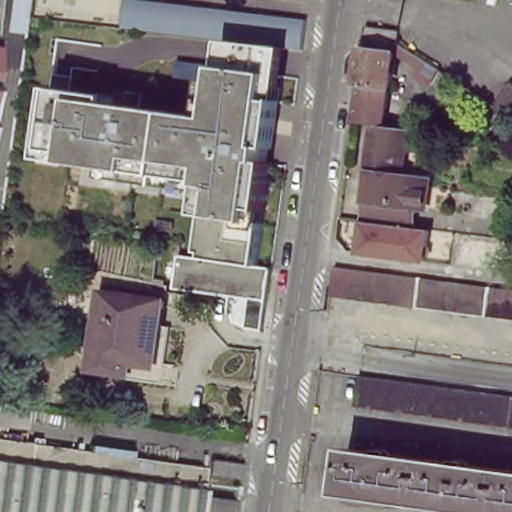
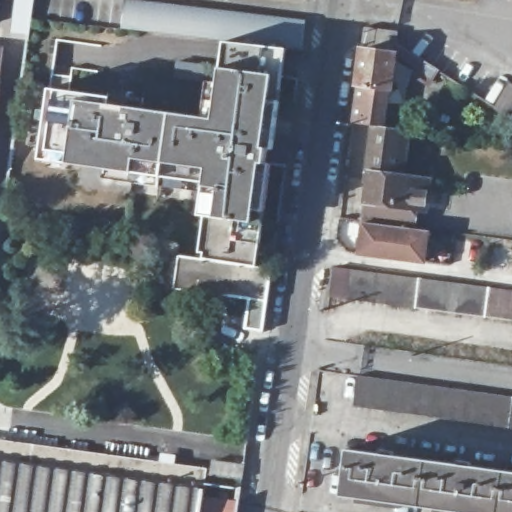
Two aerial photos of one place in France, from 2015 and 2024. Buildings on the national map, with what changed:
unchanged [(30,12),(15,9),(16,0),(32,0),(30,12)]
unchanged [(138,99),(136,108),(215,118),(223,69),(227,43),(123,30),(129,0),(133,0),(309,23),(306,53),(284,50),(280,75),(261,219),(259,263),(200,255),(203,213),(207,186),(133,180),(133,171),(71,166),(49,161),(55,91),(138,99)]
unchanged [(0,78),(0,46),(4,46),(0,78)]
unchanged [(359,106),(368,50),(399,55),(398,67),(442,94),(433,108),(419,100),(423,94),(397,77),(393,111),(391,111),(384,150),(376,149),(354,147),(359,106)]
unchanged [(493,106),(508,82),(512,84),(512,121),(492,108),(493,106)]
unchanged [(384,150),(403,152),(398,193),(403,193),(403,197),(432,201),(431,211),(380,204),(372,203),(373,196),(371,195),(376,149),(384,150)]
unchanged [(380,204),(431,211),(428,232),(419,231),(417,251),(366,244),(372,203),(380,204)]
unchanged [(231,263),(273,270),(269,300),(229,295),(173,287),(178,254),(231,263)]
unchanged [(331,265),(333,265),(348,267),(462,283),(512,289),(512,320),(326,294),(331,265)]
demolished [(155,318),(164,319),(157,376),(83,365),(85,349),(93,350),(101,287),(158,295),(155,318)]
unchanged [(354,405),(358,374),(512,396),(512,427),(354,405)]
unchanged [(204,512),(0,512),(0,440),(209,470),(204,512)]
unchanged [(383,456),(459,466),(460,461),(468,462),(467,467),(512,474),(512,512),(483,512),(341,492),(347,451),(376,455),(376,450),(384,451),(383,456)]
unchanged [(213,475),(214,459),(245,464),(243,480),(213,475)]

